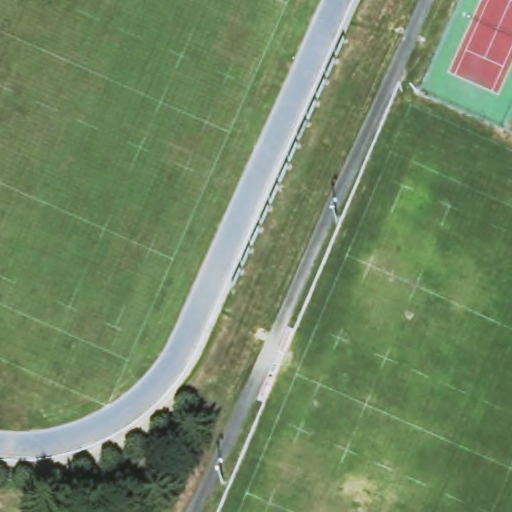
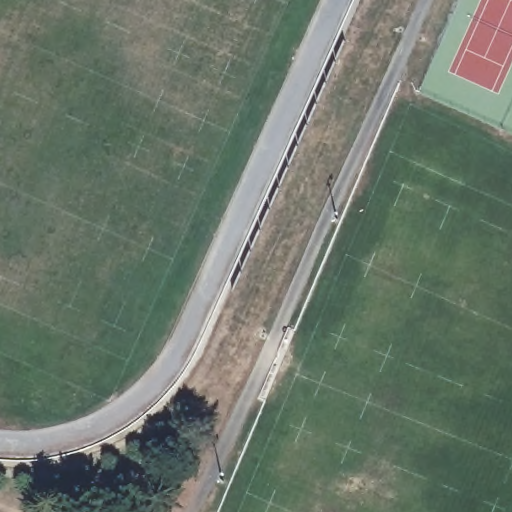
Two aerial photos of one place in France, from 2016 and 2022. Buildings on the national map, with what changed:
[]

